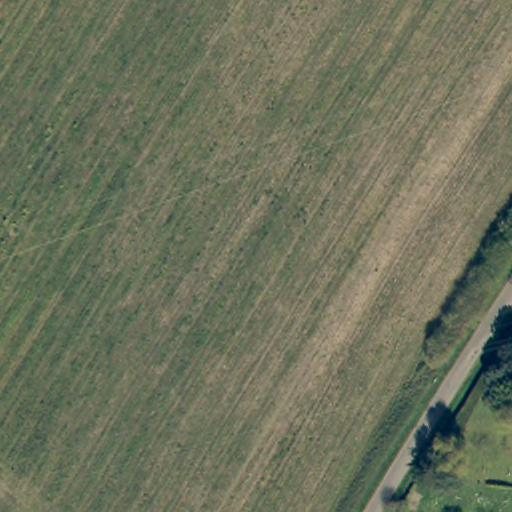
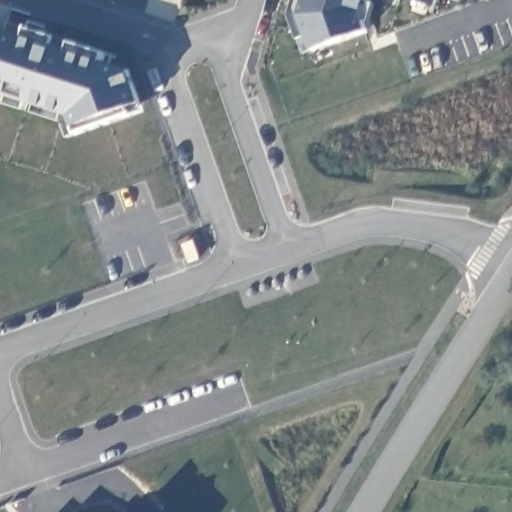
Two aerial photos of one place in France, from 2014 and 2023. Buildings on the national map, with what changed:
new [(361,14),(369,32),(311,50),(299,13),(303,0),(366,0),(361,14)]
new [(434,9),(406,0),(438,0),(434,9)]
new [(69,116),(0,93),(0,27),(127,69),(140,103),(74,127),(69,116)]
new [(192,239),(199,257),(188,260),(182,242),(192,239)]

